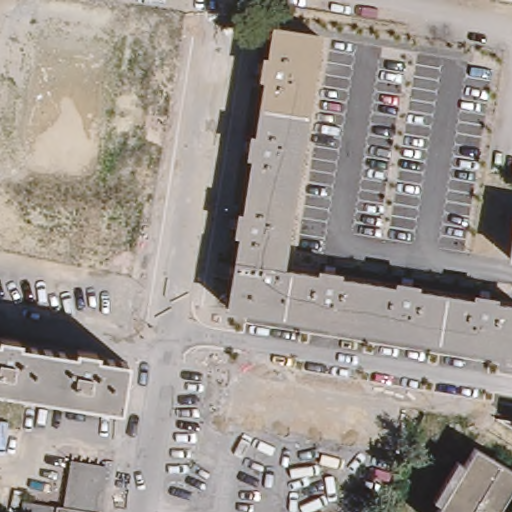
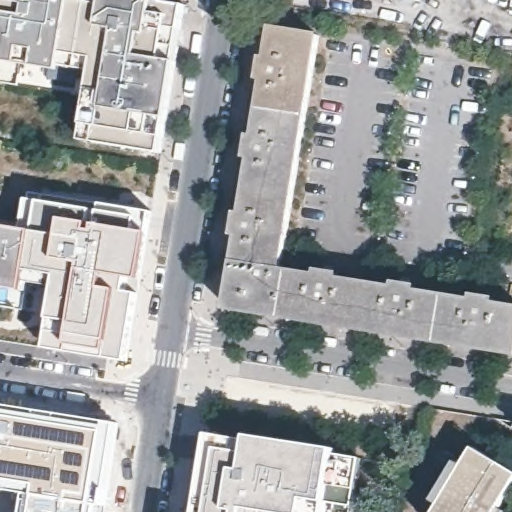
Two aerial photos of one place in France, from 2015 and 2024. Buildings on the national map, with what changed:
demolished [(36,19),(34,35),(0,30),(0,0),(38,0),(36,19)]
new [(180,62),(170,119),(167,118),(162,154),(84,141),(94,72),(80,70),(77,94),(0,81),(0,0),(151,0),(186,5),(176,62),(180,62)]
demolished [(15,154),(34,35),(36,19),(54,21),(54,17),(58,18),(57,22),(68,24),(69,20),(72,20),(71,25),(83,26),(84,22),(87,22),(86,26),(98,29),(99,24),(102,25),(101,29),(113,31),(114,27),(117,27),(117,32),(132,35),(111,167),(108,167),(106,175),(105,181),(104,190),(98,226),(75,222),(74,229),(10,219),(18,167),(19,160),(20,154),(15,154)]
unchanged [(232,307),(245,234),(240,232),(244,212),(248,214),(258,155),(253,155),(256,135),(260,136),(270,77),(265,76),(269,56),(273,57),(278,26),(323,35),(289,247),(286,268),(322,274),(323,270),(343,273),(342,277),(400,286),(400,282),(419,285),(418,290),(478,299),(479,295),(497,297),(497,302),(512,305),(512,353),(232,307)]
new [(27,230),(30,200),(43,202),(102,212),(102,205),(156,215),(152,235),(144,280),(131,278),(129,293),(142,295),(129,360),(48,348),(53,320),(58,288),(29,282),(27,291),(0,287),(0,226),(6,226),(27,230)]
demolished [(2,335),(22,338),(22,343),(78,352),(80,346),(99,350),(99,356),(132,361),(125,407),(0,387),(0,340),(1,340),(2,335)]
new [(114,433),(107,432),(97,512),(23,512),(26,494),(0,490),(0,404),(116,422),(114,433)]
new [(249,443),(250,436),(336,450),(335,455),(360,457),(353,505),(328,503),(326,512),(196,512),(210,435),(249,443)]
unchanged [(476,441),(512,463),(512,494),(501,512),(434,512),(476,441)]
demolished [(23,502),(63,508),(88,512),(21,512),(23,502)]

